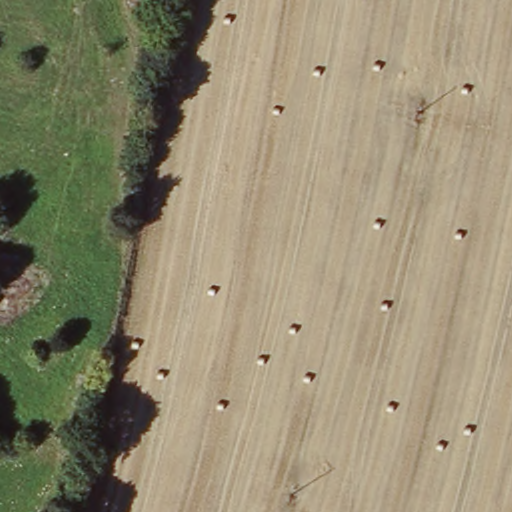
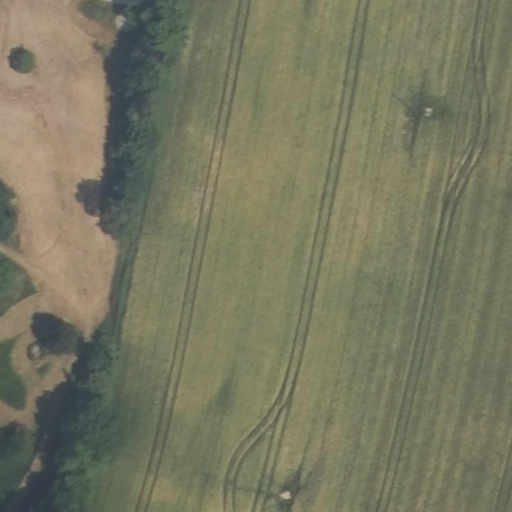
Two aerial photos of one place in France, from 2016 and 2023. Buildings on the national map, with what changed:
unchanged [(0,295),(0,289),(1,290),(0,295)]

